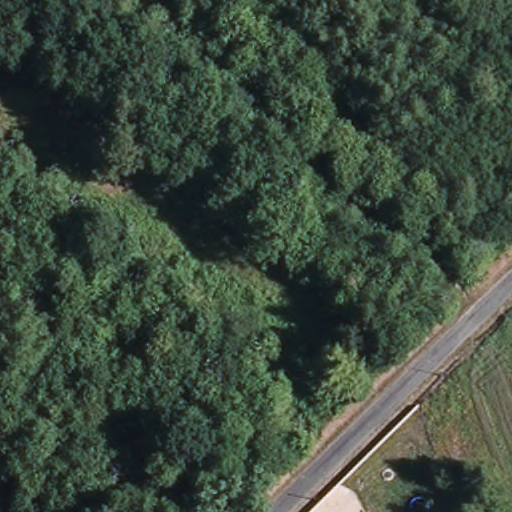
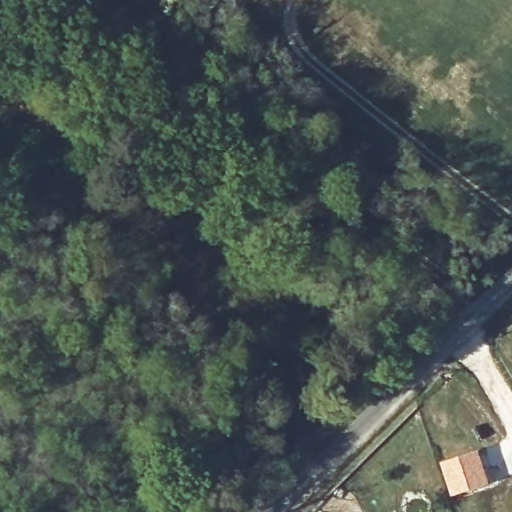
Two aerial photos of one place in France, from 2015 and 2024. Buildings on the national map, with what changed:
new [(479,449),(489,485),(450,496),(439,462),(479,449)]

